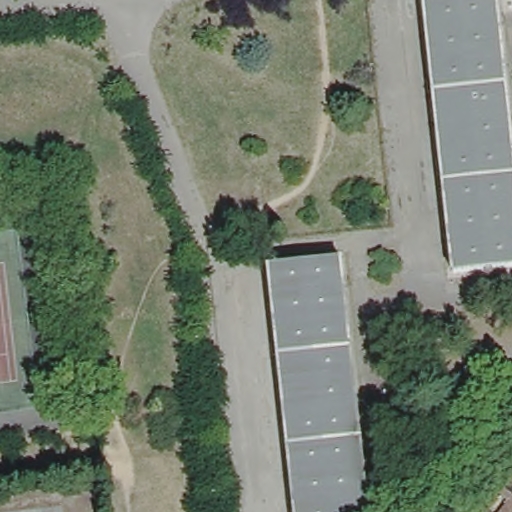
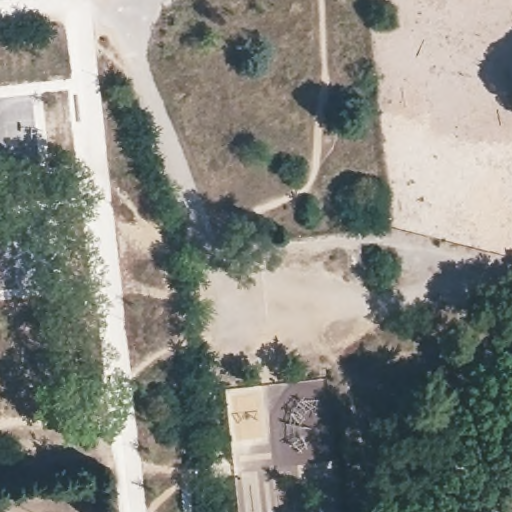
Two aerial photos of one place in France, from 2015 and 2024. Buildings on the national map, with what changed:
demolished [(512,107),(512,265),(458,270),(430,0),(434,0),(501,0),(512,107)]
demolished [(300,512),(274,265),(274,264),(275,264),(275,263),(276,263),(343,256),(370,512),(300,512)]
unchanged [(493,512),(512,489),(512,512),(493,512)]

